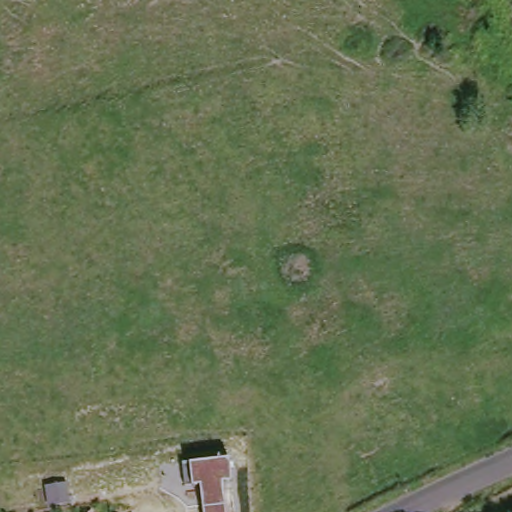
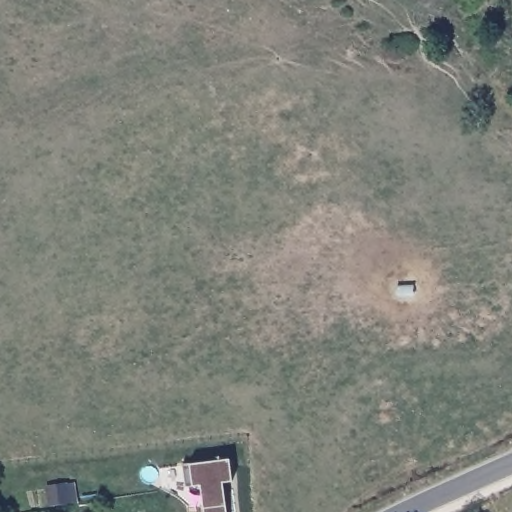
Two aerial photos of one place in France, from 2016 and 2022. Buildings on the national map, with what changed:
unchanged [(233,481),(221,483),(224,512),(206,512),(202,487),(185,490),(179,462),(227,456),(233,481)]

